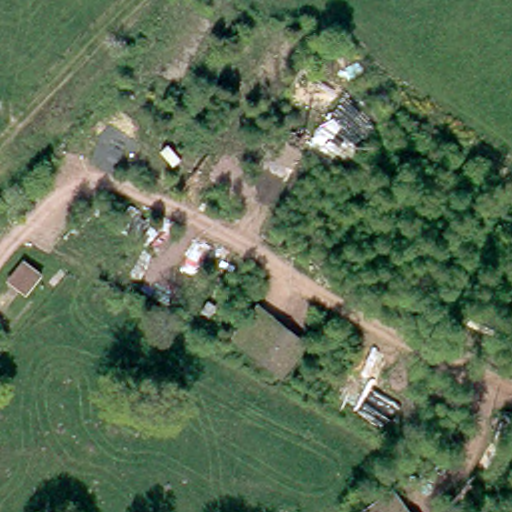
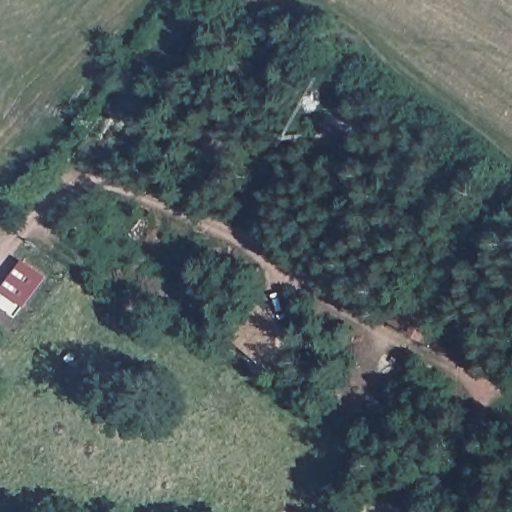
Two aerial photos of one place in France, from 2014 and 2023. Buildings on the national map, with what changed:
unchanged [(42,277),(26,295),(9,281),(25,263),(42,277)]

